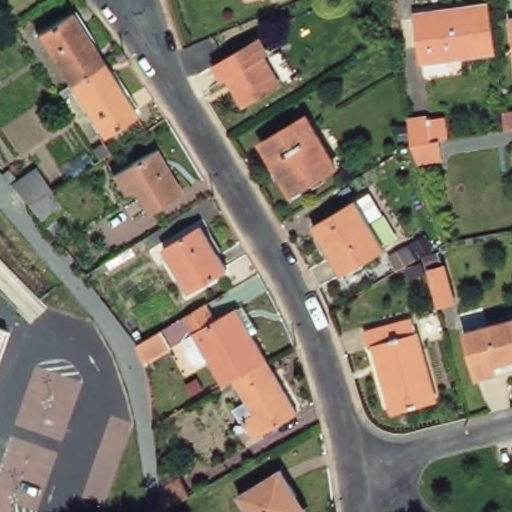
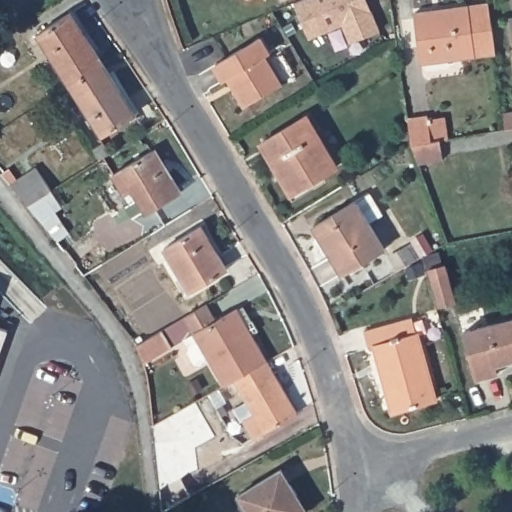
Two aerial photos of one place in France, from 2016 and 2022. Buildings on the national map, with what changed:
new [(301,0),(368,0),(381,30),(349,42),(341,25),(309,38),(294,3),(301,0)]
unchanged [(494,56),(419,66),(413,16),(488,6),(494,56)]
unchanged [(72,13),(101,64),(68,84),(38,34),(72,13)]
unchanged [(512,16),(512,36),(509,16),(512,16)]
unchanged [(247,106),(230,78),(225,81),(216,66),(259,41),(268,55),(263,59),(279,87),(247,106)]
unchanged [(101,64),(133,116),(99,136),(68,84),(101,64)]
unchanged [(512,107),(512,125),(509,126),(507,108),(512,107)]
unchanged [(444,160),(418,164),(411,144),(408,119),(429,116),(433,139),(441,138),(444,160)]
unchanged [(260,145),(304,119),(333,170),(290,195),(260,145)]
unchanged [(129,191),(120,196),(109,176),(153,151),(178,194),(143,215),(129,191)]
unchanged [(40,166),(54,189),(31,203),(14,181),(40,166)]
unchanged [(323,247),(310,228),(366,194),(378,213),(366,221),(381,245),(342,268),(337,271),(323,247)]
unchanged [(224,270),(185,292),(161,250),(199,228),(224,270)]
new [(448,263),(458,301),(441,305),(431,267),(448,263)]
unchanged [(224,388),(209,363),(199,369),(189,367),(183,358),(185,348),(182,342),(143,365),(141,356),(137,346),(169,327),(203,306),(214,325),(235,312),(244,326),(249,323),(254,333),(249,336),(265,363),(234,382),(224,388)]
unchanged [(498,364),(499,373),(479,377),(467,330),(512,319),(512,360),(498,364)]
unchanged [(390,412),(374,349),(368,350),(362,333),(410,320),(415,337),(419,336),(437,399),(390,412)]
unchanged [(296,416),(254,441),(244,424),(242,425),(234,411),(247,404),(234,382),(265,363),(296,416)]
unchanged [(282,471),(296,493),(295,496),(292,498),(300,512),(250,512),(240,496),(282,471)]
unchanged [(188,482),(199,499),(177,512),(168,512),(166,495),(188,482)]

